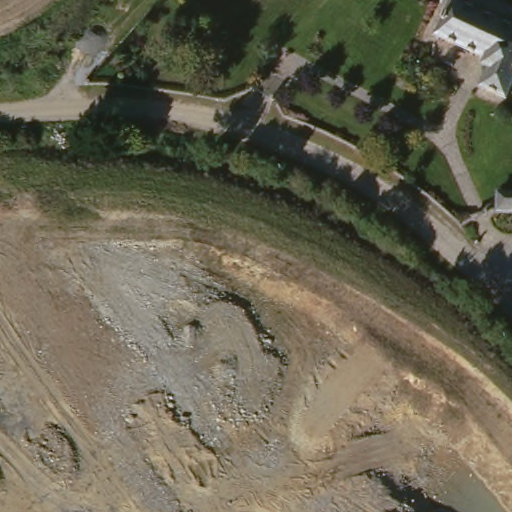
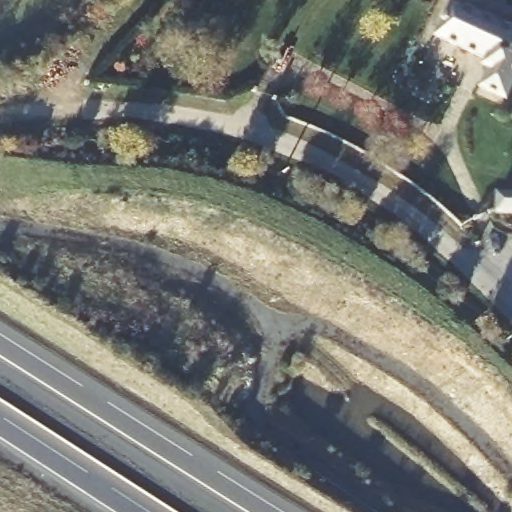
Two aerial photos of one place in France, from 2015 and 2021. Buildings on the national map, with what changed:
unchanged [(512,101),(511,103),(485,93),(491,76),(489,70),(491,63),(440,39),(456,4),(512,29),(512,101)]
unchanged [(512,225),(500,225),(499,205),(512,205),(512,225)]

